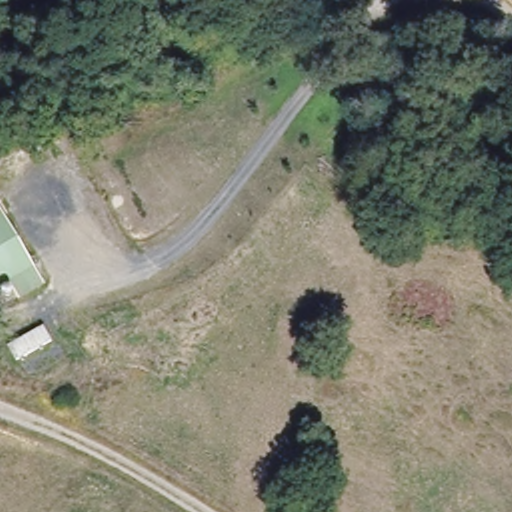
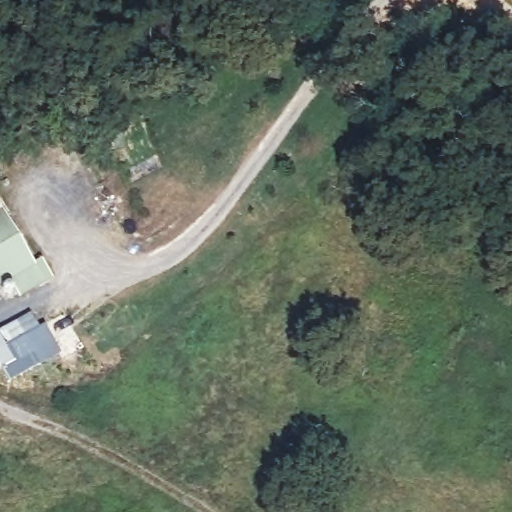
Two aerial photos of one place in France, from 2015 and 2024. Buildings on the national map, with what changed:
unchanged [(18,295),(7,278),(0,282),(0,208),(44,279),(18,295)]
new [(39,327),(45,323),(61,354),(9,383),(0,368),(0,332),(30,313),(39,327)]

